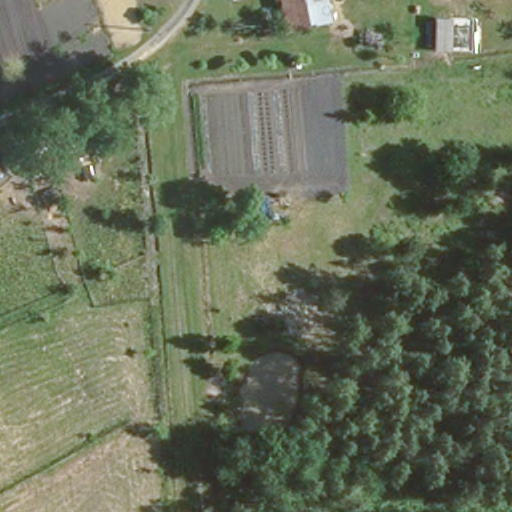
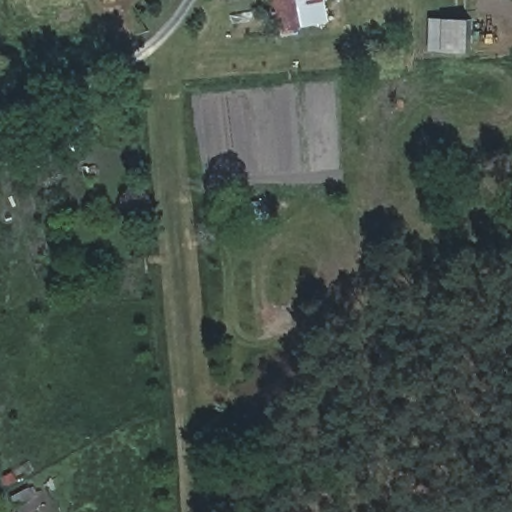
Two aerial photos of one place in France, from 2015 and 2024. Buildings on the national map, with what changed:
unchanged [(279,0),(296,0),(280,3),(279,0)]
unchanged [(329,0),(331,24),(283,31),(280,3),(296,0),(329,0)]
unchanged [(448,15),(446,45),(432,44),(433,14),(448,15)]

